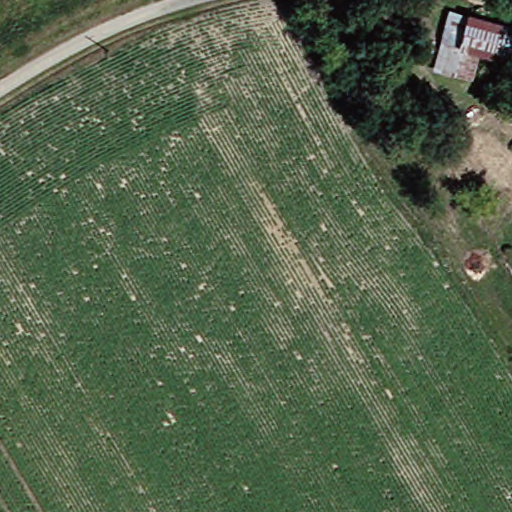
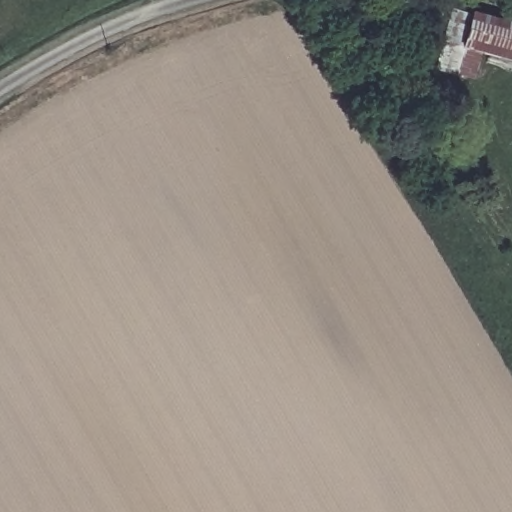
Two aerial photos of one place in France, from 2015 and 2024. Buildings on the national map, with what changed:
unchanged [(473,53),(480,20),(512,26),(512,60),(473,53)]

